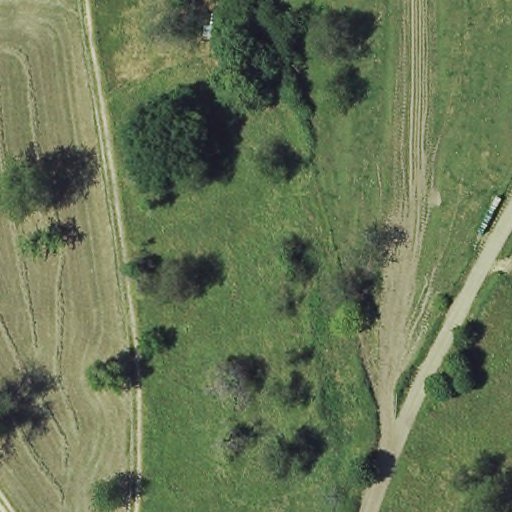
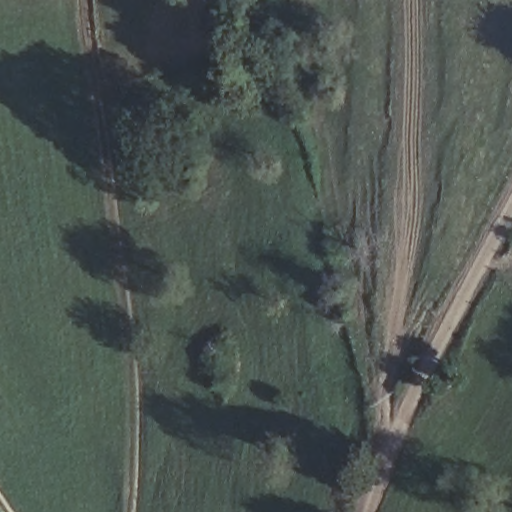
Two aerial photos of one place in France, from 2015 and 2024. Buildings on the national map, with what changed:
[]

